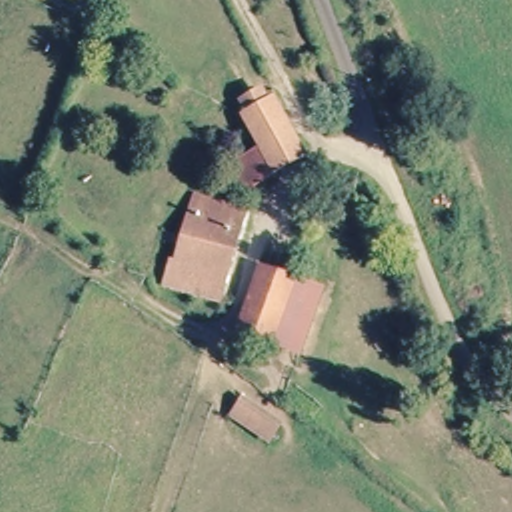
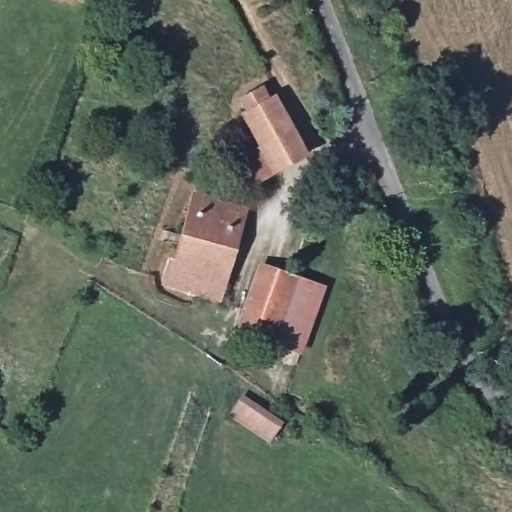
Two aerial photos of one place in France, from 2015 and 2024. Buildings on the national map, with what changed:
unchanged [(66,0),(72,0),(71,2),(66,0)]
unchanged [(249,188),(233,161),(255,149),(240,119),(247,116),(240,101),(261,91),(268,106),(278,101),(305,159),(249,188)]
unchanged [(195,196),(236,209),(215,284),(229,287),(224,305),(211,302),(163,287),(195,196)]
unchanged [(262,263),(305,282),(325,287),(303,356),(276,341),(245,323),(262,263)]
unchanged [(229,419),(245,396),(283,422),(271,447),(229,419)]

